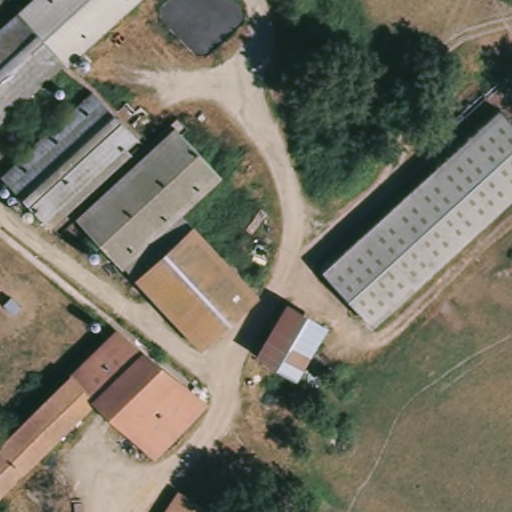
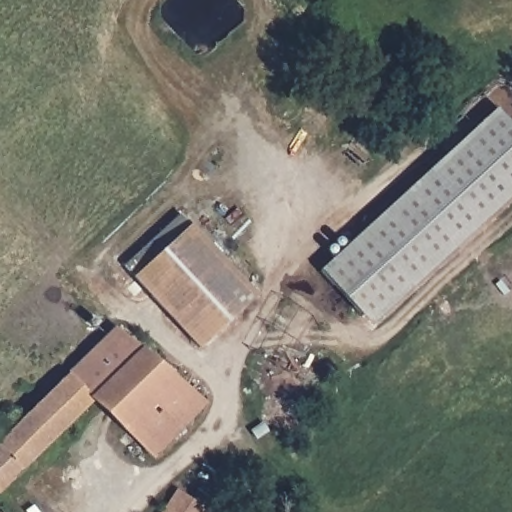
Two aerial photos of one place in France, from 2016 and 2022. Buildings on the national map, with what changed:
demolished [(29,0),(138,0),(65,65),(17,10),(29,0)]
demolished [(17,10),(65,65),(0,126),(0,27),(17,10)]
demolished [(141,141),(46,223),(3,174),(99,92),(141,141)]
unchanged [(512,121),(512,197),(372,322),(323,266),(498,106),(512,121)]
demolished [(180,127),(203,151),(227,177),(185,213),(126,263),(123,265),(112,253),(78,213),(180,127)]
unchanged [(185,213),(250,291),(258,301),(198,350),(178,325),(126,263),(185,213)]
unchanged [(277,372),(253,356),(287,306),(295,312),(319,328),(324,331),(314,346),(290,381),(277,372)]
unchanged [(47,394),(115,326),(147,358),(203,409),(154,461),(93,406),(0,498),(0,426),(4,421),(13,429),(47,394)]
unchanged [(164,512),(175,495),(203,512),(164,512)]

